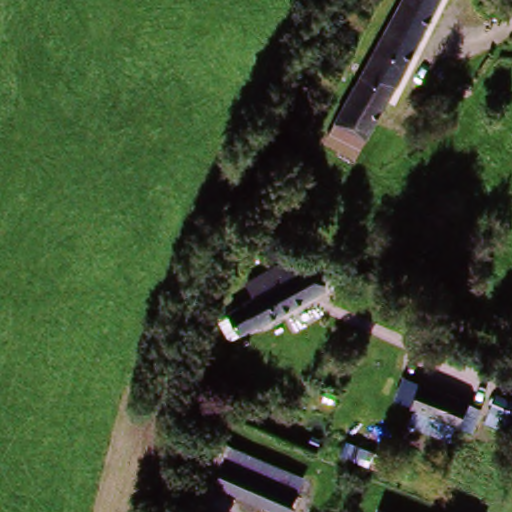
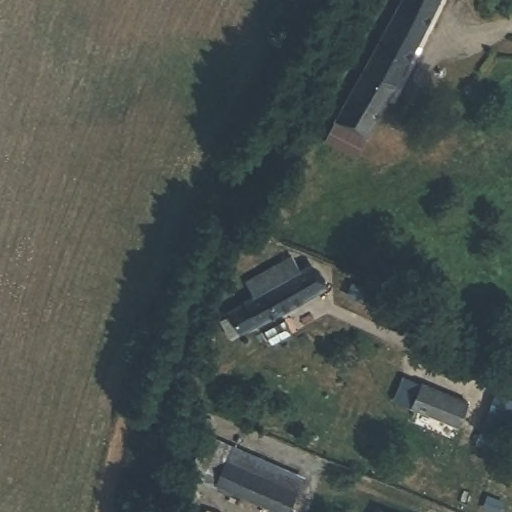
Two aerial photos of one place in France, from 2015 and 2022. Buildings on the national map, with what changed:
unchanged [(363,150),(332,134),(402,0),(443,0),(363,150)]
unchanged [(333,287),(265,324),(252,298),(255,297),(253,289),(262,285),(257,275),(285,259),(295,275),(318,262),(333,287)]
unchanged [(465,421),(460,421),(453,435),(415,420),(422,405),(417,402),(426,379),(475,398),(465,421)]
unchanged [(205,478),(223,440),(318,489),(310,504),(242,470),(232,491),(205,478)]
unchanged [(310,504),(307,512),(271,512),(232,491),(242,470),(310,504)]

